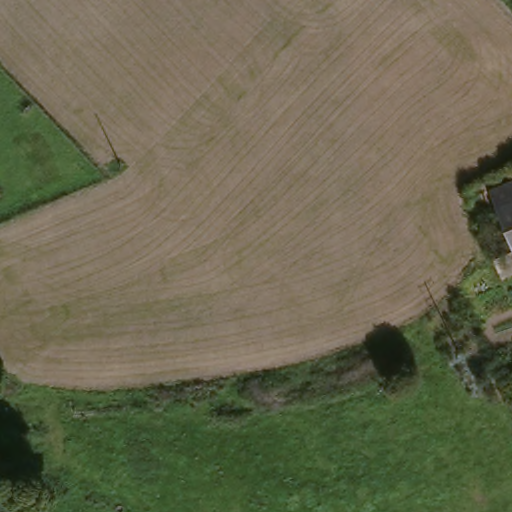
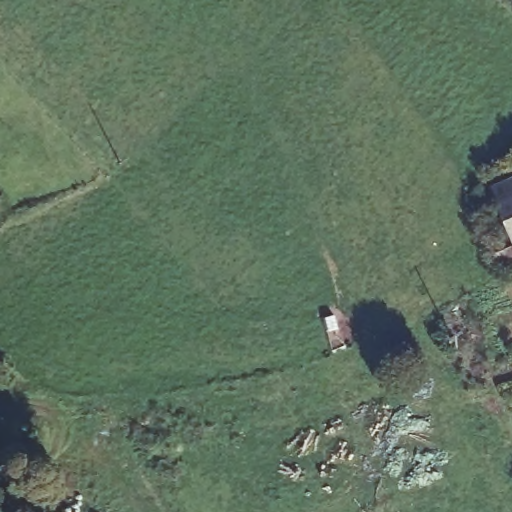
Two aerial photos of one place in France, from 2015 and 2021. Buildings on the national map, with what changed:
unchanged [(512,183),(512,226),(497,189),(512,183)]

